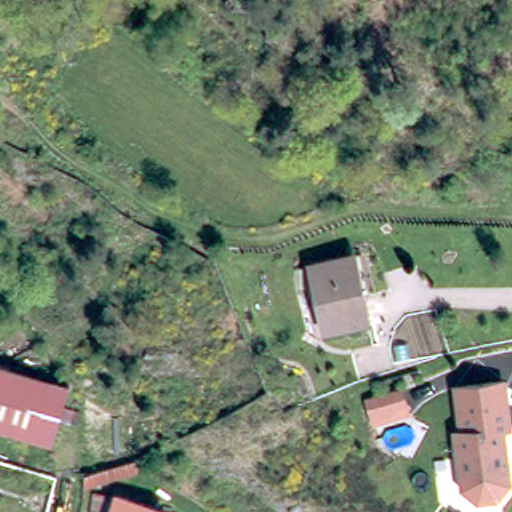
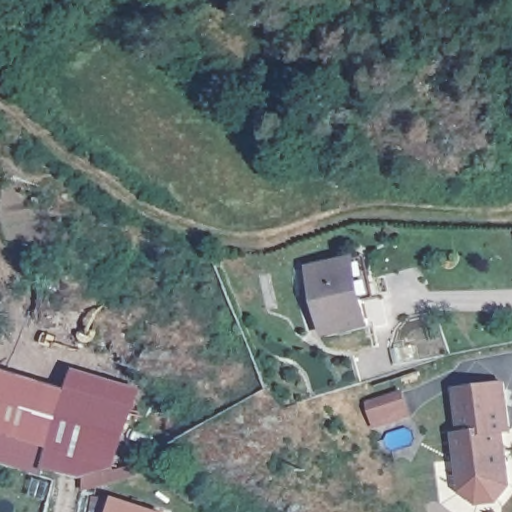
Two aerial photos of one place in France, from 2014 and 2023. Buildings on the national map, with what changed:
unchanged [(315,263),(356,255),(364,295),(367,295),(372,318),(329,328),(315,263)]
new [(52,450),(64,412),(70,391),(68,391),(76,367),(143,387),(122,466),(85,477),(47,466),(45,472),(0,459),(0,435),(52,450)]
unchanged [(65,390),(70,391),(64,412),(52,450),(0,435),(0,370),(65,390)]
unchanged [(512,415),(512,425),(503,427),(510,453),(512,453),(512,495),(512,496),(492,500),(474,491),(460,436),(466,434),(455,391),(502,378),(512,415)]
new [(376,425),(375,417),(369,400),(403,390),(408,407),(410,415),(376,425)]
unchanged [(162,511),(162,512),(112,512),(117,497),(162,511)]

